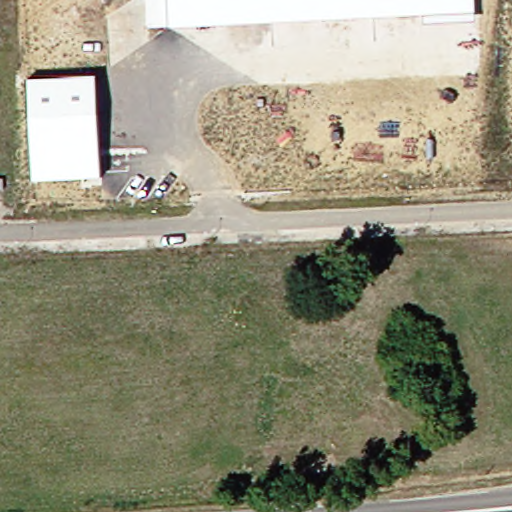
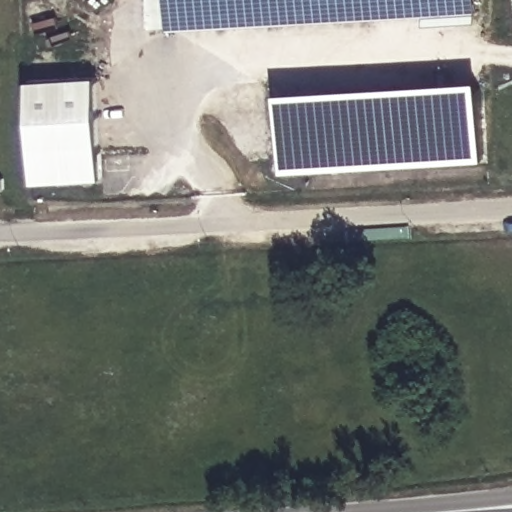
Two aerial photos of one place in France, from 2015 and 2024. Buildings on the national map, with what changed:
unchanged [(146,0),(474,0),(475,14),(170,28),(147,28),(146,0)]
new [(32,181),(28,79),(96,76),(100,178),(32,181)]
new [(478,164),(278,172),(275,93),(476,85),(478,164)]

